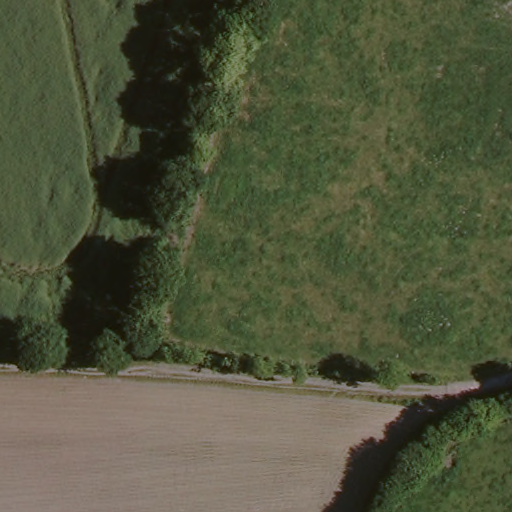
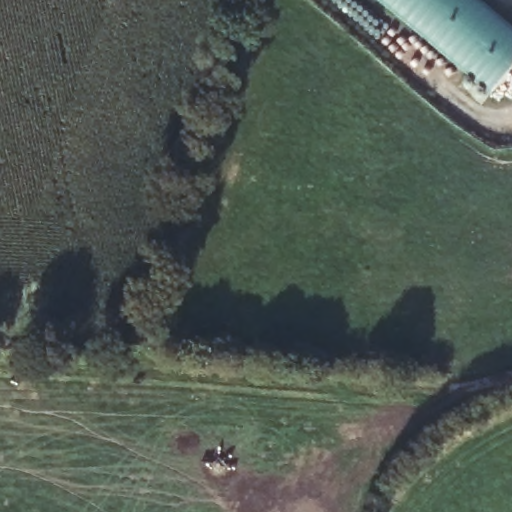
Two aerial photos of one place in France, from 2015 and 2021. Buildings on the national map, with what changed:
new [(381,0),(479,0),(512,28),(512,67),(490,93),(381,0)]

